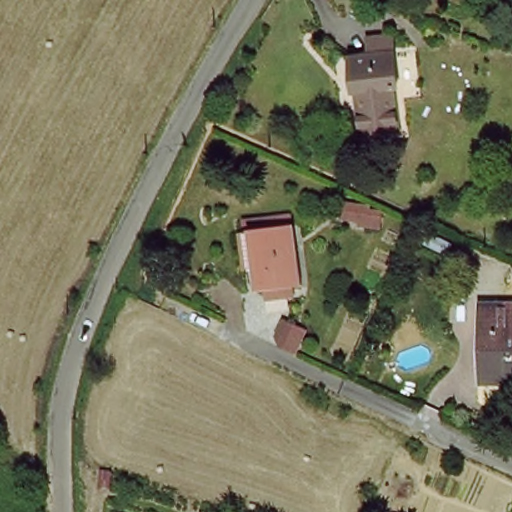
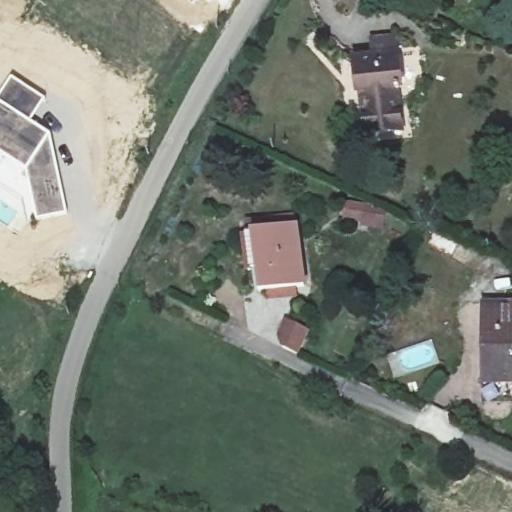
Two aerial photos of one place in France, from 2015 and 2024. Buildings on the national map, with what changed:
new [(187,0),(196,0),(191,5),(187,0)]
unchanged [(365,134),(360,96),(356,96),(352,63),(373,60),(370,40),(398,36),(405,95),(401,97),(404,130),(365,134)]
new [(11,75),(47,100),(33,121),(52,134),(69,216),(35,223),(31,211),(28,197),(23,173),(0,157),(0,91),(11,75)]
new [(23,173),(28,197),(25,197),(21,199),(0,185),(0,157),(23,173)]
unchanged [(330,205),(350,208),(347,227),(328,223),(330,205)]
unchanged [(256,290),(255,268),(260,267),(258,230),(297,225),(302,286),(256,290)]
unchanged [(484,325),(512,325),(512,373),(485,373),(484,325)]
unchanged [(92,473),(107,475),(105,496),(88,493),(92,473)]

